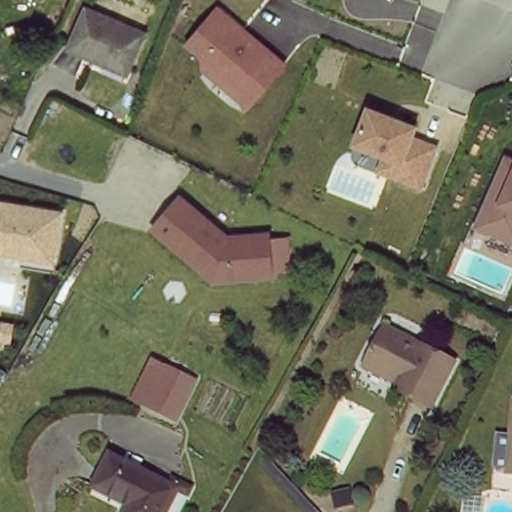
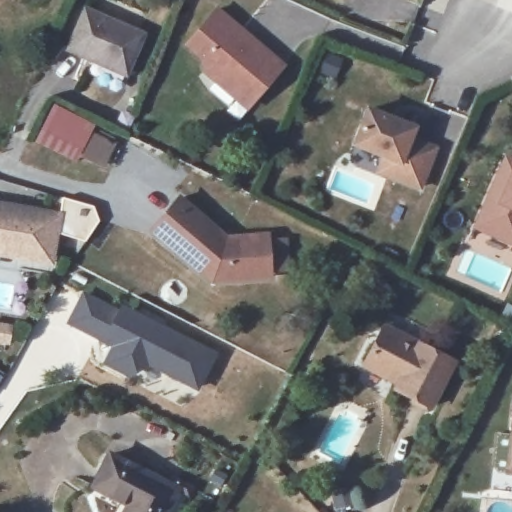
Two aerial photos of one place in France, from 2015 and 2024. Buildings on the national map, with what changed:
unchanged [(201,74),(199,60),(181,46),(216,6),(286,64),(247,112),(201,74)]
unchanged [(132,70),(109,60),(106,66),(70,51),(86,15),(145,39),(132,70)]
unchanged [(417,192),(373,174),(381,155),(350,145),(368,102),(418,122),(412,139),(436,149),(417,192)]
new [(105,168),(80,157),(76,164),(33,143),(53,103),(96,124),(95,129),(118,141),(105,168)]
unchanged [(500,162),(512,167),(512,248),(478,233),(471,231),(500,162)]
unchanged [(181,194),(228,234),(270,231),(273,272),(216,276),(155,225),(181,194)]
new [(61,211),(58,211),(62,197),(93,205),(98,220),(83,241),(58,232),(61,211)]
unchanged [(0,201),(61,211),(53,267),(0,257),(0,201)]
new [(83,292),(119,309),(121,305),(218,353),(198,391),(149,365),(130,377),(102,365),(111,347),(102,342),(66,323),(83,292)]
unchanged [(438,409),(403,392),(406,386),(370,367),(390,326),(462,362),(438,409)]
demolished [(173,424),(128,403),(149,351),(198,376),(173,424)]
unchanged [(162,512),(120,512),(125,502),(90,483),(107,452),(176,486),(162,512)]

